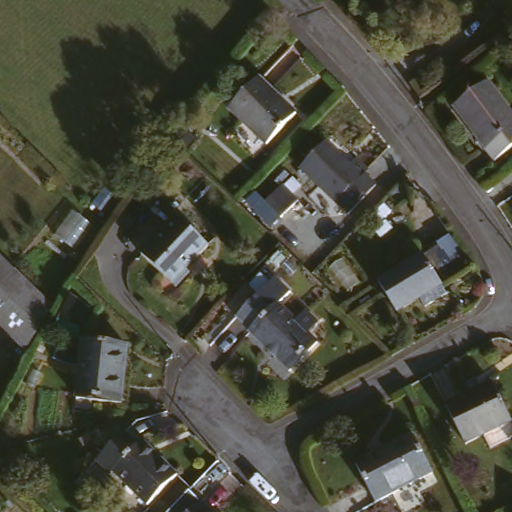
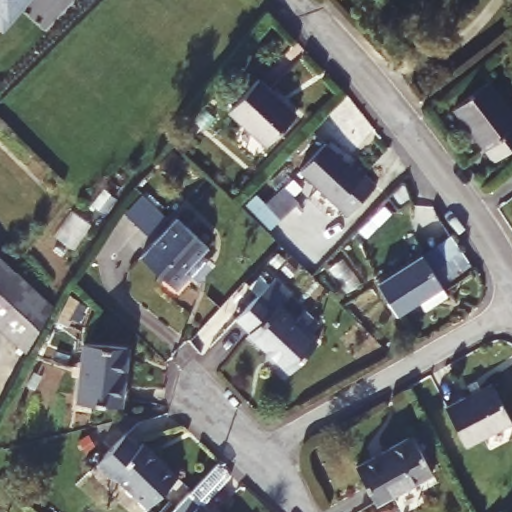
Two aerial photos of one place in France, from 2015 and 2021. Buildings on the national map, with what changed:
new [(0,0),(27,0),(3,27),(0,25),(0,0)]
unchanged [(263,74),(303,110),(277,143),(236,108),(263,74)]
unchanged [(494,75),(512,100),(512,143),(498,155),(458,102),(494,75)]
unchanged [(331,138),(354,158),(361,151),(376,163),(371,168),(382,178),(355,207),(308,165),(331,138)]
unchanged [(306,197),(289,214),(275,200),(292,183),(306,197)]
unchanged [(185,212),(217,242),(194,265),(199,270),(184,284),(150,250),(185,212)]
unchanged [(61,309),(38,351),(0,317),(0,251),(21,271),(61,309)]
unchanged [(429,253),(430,254),(430,255),(439,269),(448,283),(406,309),(387,279),(429,253)]
unchanged [(277,280),(292,293),(282,306),(301,322),(311,310),(323,320),(312,333),(321,341),(294,373),(257,341),(258,337),(240,322),(277,280)]
unchanged [(91,336),(135,342),(128,397),(83,390),(91,336)]
unchanged [(496,381),(512,413),(512,422),(471,444),(450,404),(496,381)]
unchanged [(131,427),(146,442),(150,437),(184,471),(154,504),(124,469),(119,473),(103,458),(131,427)]
unchanged [(417,435),(437,472),(381,501),(360,465),(417,435)]
unchanged [(208,512),(197,512),(202,507),(208,512)]

